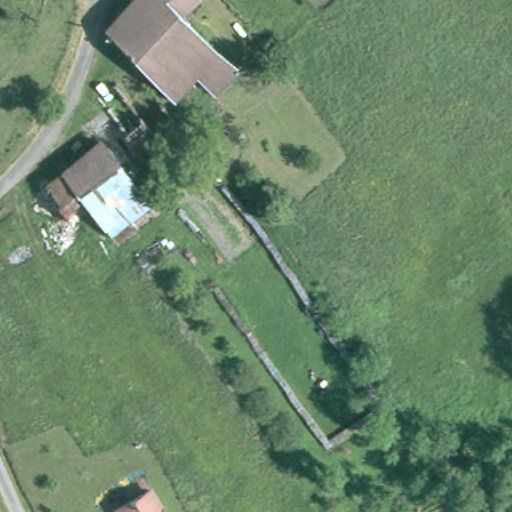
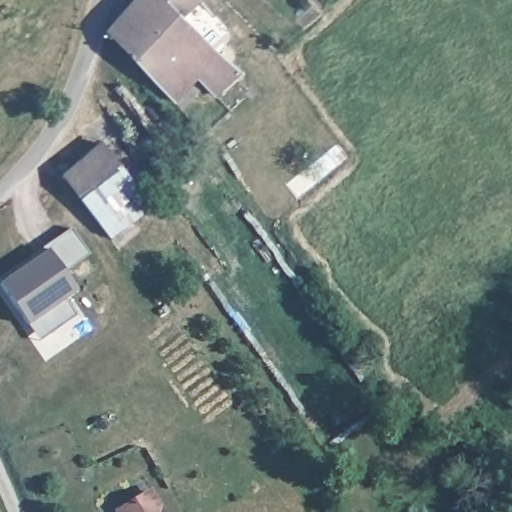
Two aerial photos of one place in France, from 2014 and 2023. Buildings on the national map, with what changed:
unchanged [(200,70),(177,95),(108,27),(133,0),(194,0),(181,15),(240,74),(220,90),(200,70)]
unchanged [(102,94),(115,84),(124,95),(154,130),(140,141),(110,105),(102,94)]
unchanged [(136,182),(150,201),(110,230),(98,215),(65,172),(103,142),(136,182)]
demolished [(98,215),(64,241),(31,200),(65,172),(98,215)]
new [(0,284),(0,281),(49,249),(45,245),(71,226),(91,252),(65,270),(77,288),(63,298),(75,316),(38,342),(0,284)]
new [(157,512),(116,512),(147,495),(157,512)]
demolished [(171,512),(137,512),(162,497),(171,512)]

